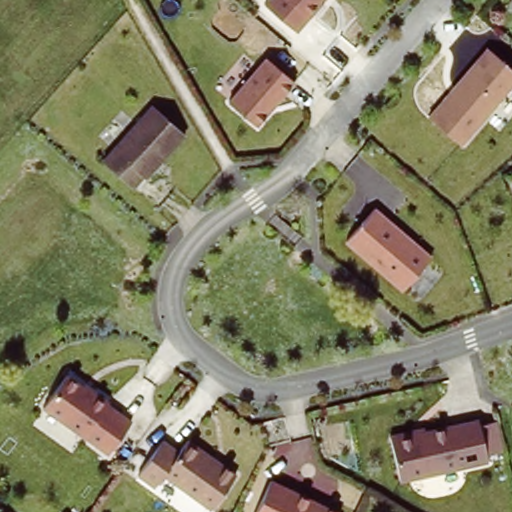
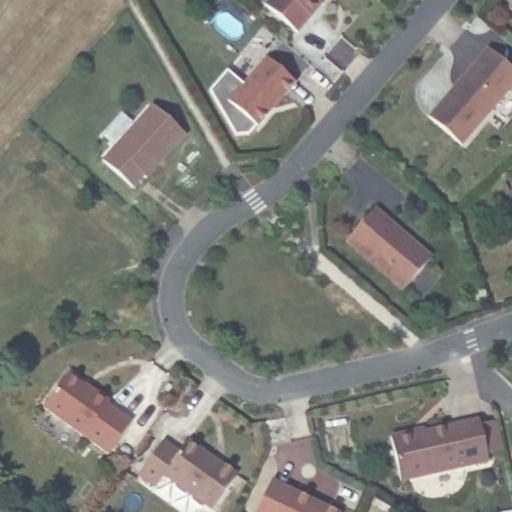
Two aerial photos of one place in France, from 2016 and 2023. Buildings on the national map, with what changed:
unchanged [(268,0),(321,0),(321,1),(323,2),(298,32),(265,4),(268,0)]
unchanged [(428,117),(491,48),(512,70),(512,91),(462,148),(428,117)]
unchanged [(266,61),(294,86),(256,129),(228,105),(266,61)]
unchanged [(156,106),(188,135),(152,176),(149,174),(139,185),(109,159),(156,106)]
unchanged [(374,207),(432,257),(404,290),(346,241),(374,207)]
unchanged [(71,372),(95,390),(98,387),(113,398),(111,401),(135,418),(111,451),(48,405),(71,372)]
unchanged [(414,432),(414,436),(479,420),(489,461),(402,482),(391,437),(414,432)]
unchanged [(162,437),(178,448),(187,437),(236,471),(212,506),(163,472),(155,484),(138,472),(162,437)]
unchanged [(341,511),(340,512),(258,512),(274,479),(341,511)]

